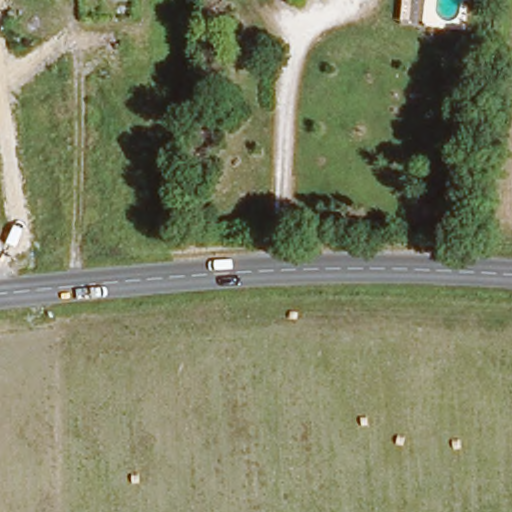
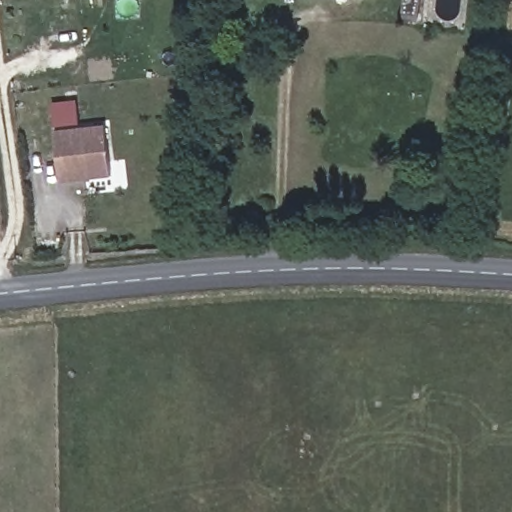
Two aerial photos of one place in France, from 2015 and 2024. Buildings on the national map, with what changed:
new [(77,102),(79,122),(54,125),(52,105),(77,102)]
new [(106,125),(112,176),(60,181),(54,131),(106,125)]

